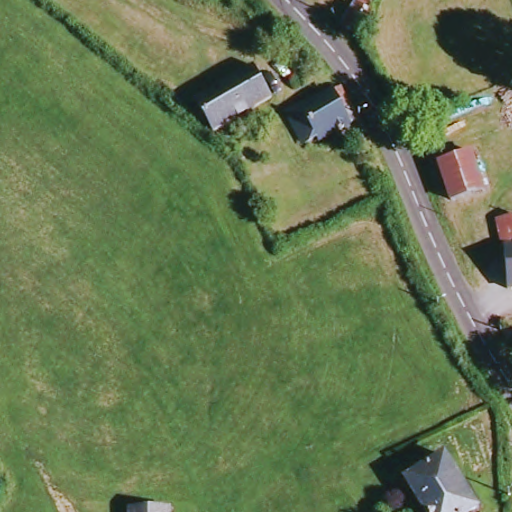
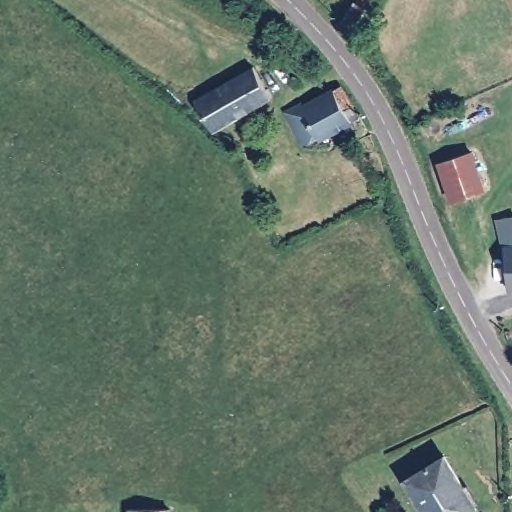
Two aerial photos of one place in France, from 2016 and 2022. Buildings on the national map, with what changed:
unchanged [(379,19),(365,42),(344,32),(356,3),(358,0),(386,0),(379,19)]
unchanged [(200,99),(254,70),(272,99),(216,131),(200,99)]
unchanged [(332,140),(329,135),(315,144),(297,112),(302,109),(314,104),(317,106),(342,93),(359,125),(332,140)]
unchanged [(479,155),(494,195),(461,206),(442,170),(479,155)]
unchanged [(502,226),(512,223),(512,279),(502,226)]
unchanged [(481,512),(431,512),(411,480),(447,458),(481,512)]

